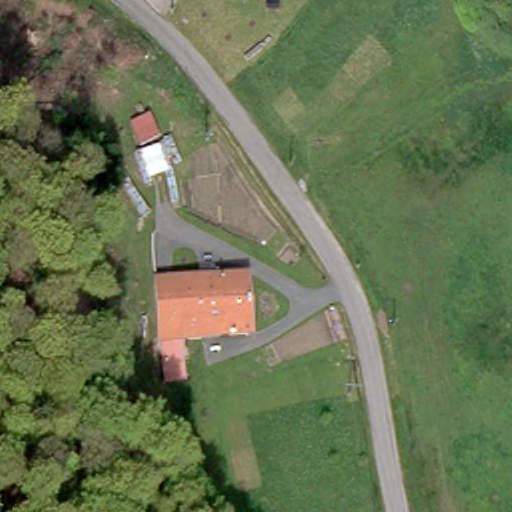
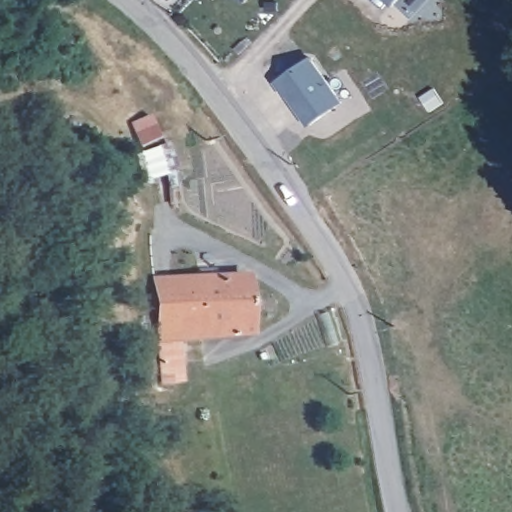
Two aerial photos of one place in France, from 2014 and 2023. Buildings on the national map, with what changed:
unchanged [(241,5),(235,0),(246,0),(241,5)]
new [(391,7),(383,0),(397,0),(391,7)]
new [(283,96),(275,81),(313,55),(343,103),(307,126),(287,94),(283,96)]
unchanged [(202,275),(201,268),(220,267),(220,274),(250,272),(253,329),(181,335),(185,373),(164,375),(154,277),(202,275)]

